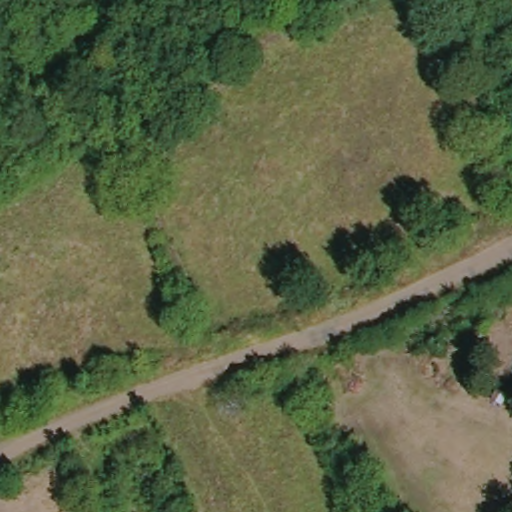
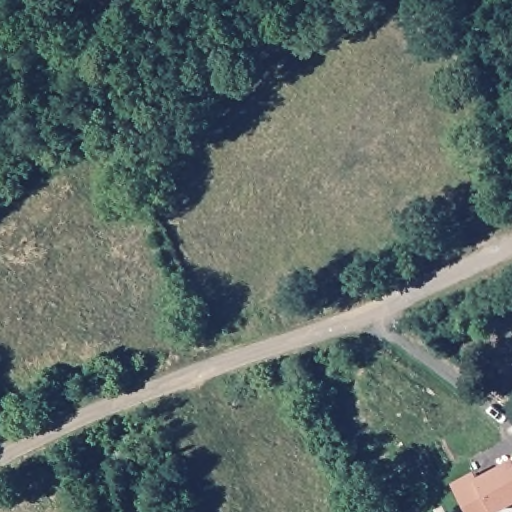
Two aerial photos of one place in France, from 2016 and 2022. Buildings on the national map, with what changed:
new [(490,512),(470,512),(454,484),(476,472),(479,479),(512,460),(512,501),(490,512)]

